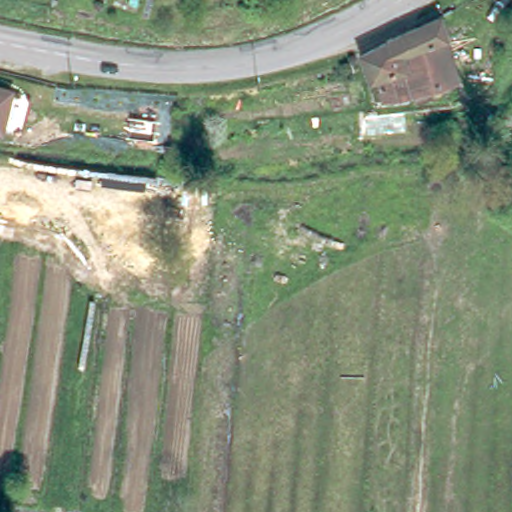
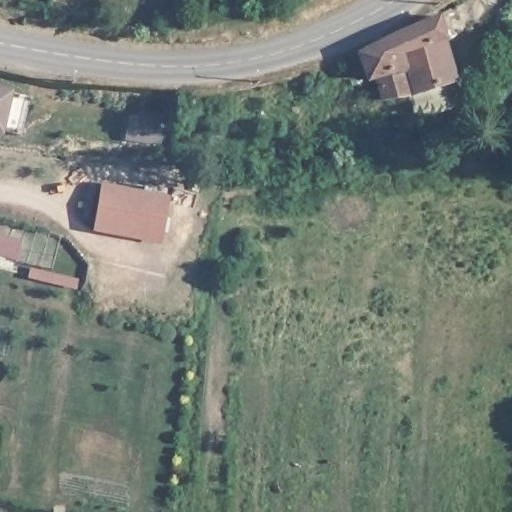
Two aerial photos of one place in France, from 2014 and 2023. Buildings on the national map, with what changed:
unchanged [(396,35),(439,17),(457,82),(414,95),(384,101),(379,76),(369,80),(360,54),(396,35)]
unchanged [(0,132),(0,91),(26,98),(17,136),(0,132)]
unchanged [(153,147),(136,144),(139,116),(158,118),(153,147)]
new [(153,236),(131,232),(88,224),(95,185),(138,193),(160,197),(153,236)]
new [(1,256),(0,256),(0,236),(21,241),(20,247),(17,260),(6,257),(1,256)]

